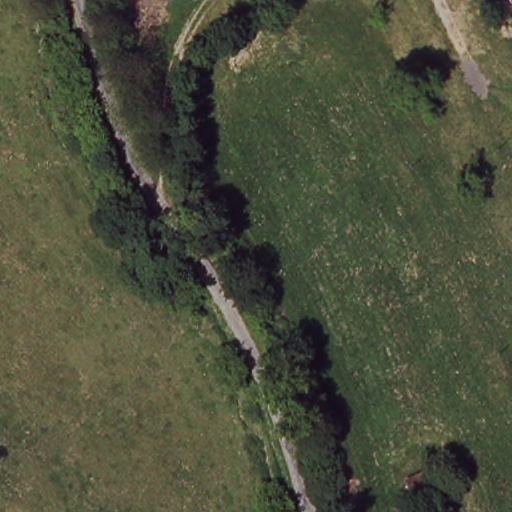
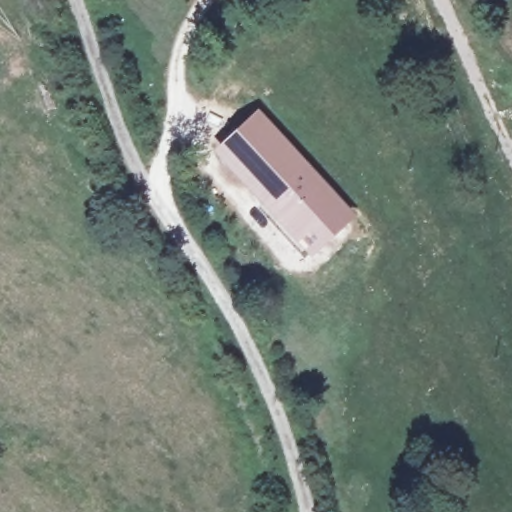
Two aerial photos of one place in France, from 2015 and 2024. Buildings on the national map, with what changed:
new [(216,151),(254,114),(315,179),(277,216),(216,151)]
new [(293,232),(277,216),(315,179),(347,213),(327,231),(309,249),(293,232)]
demolished [(444,496),(413,509),(400,482),(430,467),(444,496)]

